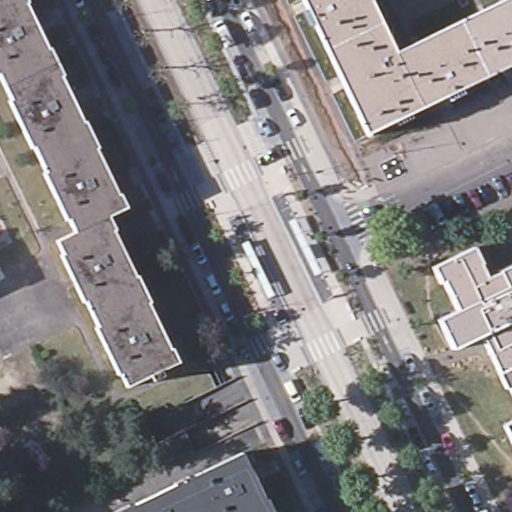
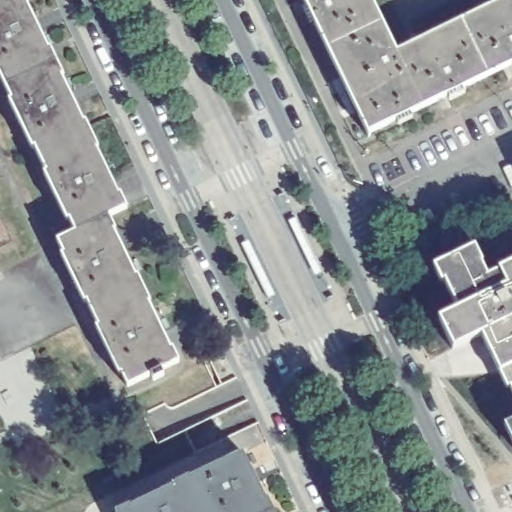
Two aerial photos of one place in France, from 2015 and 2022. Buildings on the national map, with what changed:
unchanged [(4,0),(0,2),(0,0),(4,0)]
unchanged [(25,6),(46,50),(49,48),(56,63),(5,88),(0,77),(0,2),(4,0),(25,0),(27,5),(25,6)]
unchanged [(366,0),(378,25),(322,52),(297,0),(366,0)]
unchanged [(454,22),(500,0),(512,0),(512,65),(482,80),(454,22)]
unchanged [(454,22),(482,80),(420,111),(391,52),(454,22)]
unchanged [(420,111),(364,137),(322,52),(378,25),(391,52),(420,111)]
unchanged [(62,74),(58,76),(82,124),(35,147),(32,148),(8,102),(12,100),(5,88),(56,63),(62,74)]
unchanged [(71,219),(67,220),(44,176),(47,174),(35,147),(82,124),(85,122),(99,149),(95,151),(117,196),(121,194),(128,209),(109,217),(77,232),(71,219)]
unchanged [(85,301),(82,302),(60,257),(63,255),(57,242),(77,232),(109,217),(114,230),(111,231),(135,279),(85,301)]
unchanged [(448,348),(435,321),(457,311),(445,294),(428,271),(472,247),(482,280),(512,265),(512,395),(482,333),(448,348)]
unchanged [(152,381),(150,376),(127,386),(122,373),(117,375),(95,328),(97,327),(85,301),(135,279),(139,277),(150,302),(147,303),(169,349),(173,347),(180,361),(161,370),(163,375),(152,381)]
unchanged [(162,404),(186,393),(190,401),(241,378),(251,400),(189,431),(175,437),(162,404)]
unchanged [(512,422),(512,447),(502,427),(512,422)]
unchanged [(240,453),(269,512),(113,512),(240,453)]

